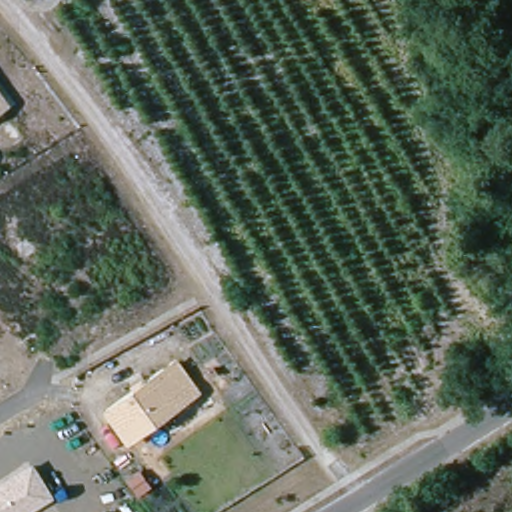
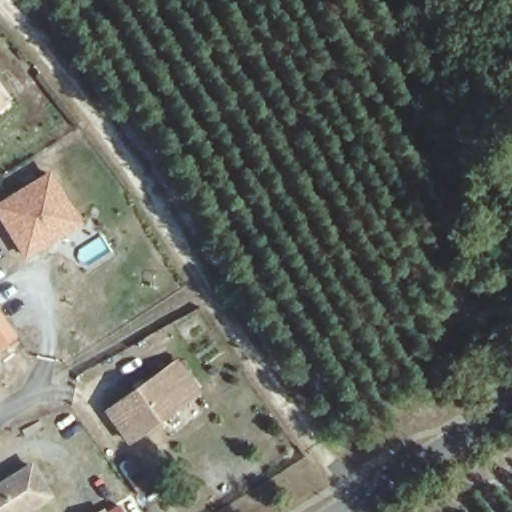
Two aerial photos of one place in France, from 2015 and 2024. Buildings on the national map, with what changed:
unchanged [(0,104),(0,101),(2,102),(0,104)]
new [(27,260),(0,220),(0,202),(50,170),(82,225),(27,260)]
new [(0,349),(0,311),(17,335),(0,349)]
unchanged [(109,411),(177,360),(186,372),(199,390),(160,419),(131,440),(109,411)]
unchanged [(27,512),(0,512),(0,481),(30,462),(52,497),(27,512)]
unchanged [(145,466),(157,481),(146,490),(134,475),(145,466)]
unchanged [(95,512),(102,507),(106,512),(95,512)]

